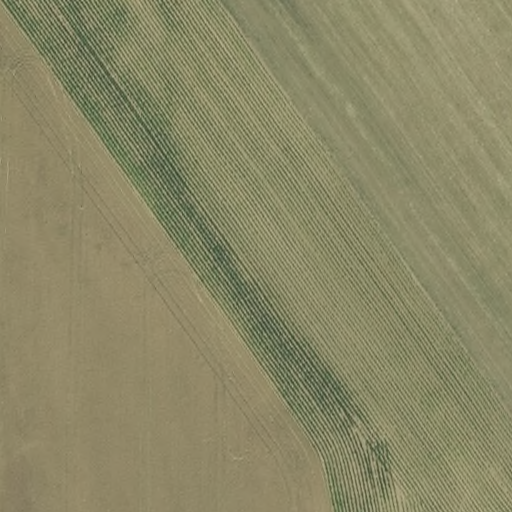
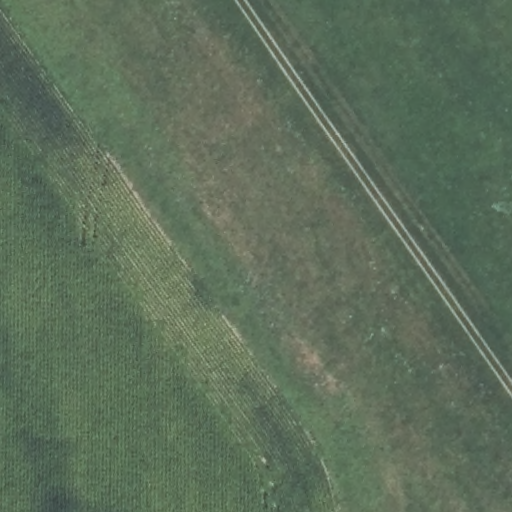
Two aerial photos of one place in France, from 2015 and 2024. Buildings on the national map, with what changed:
[]

